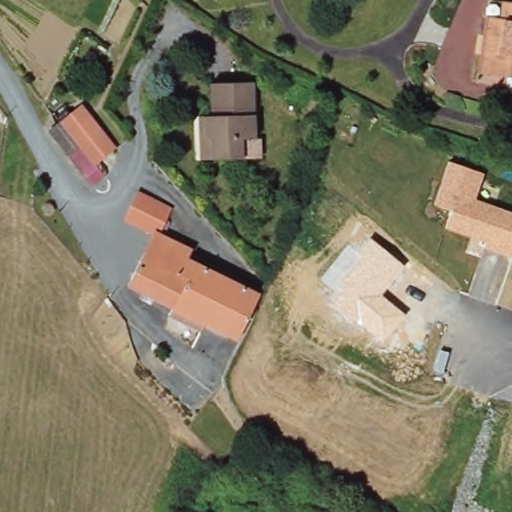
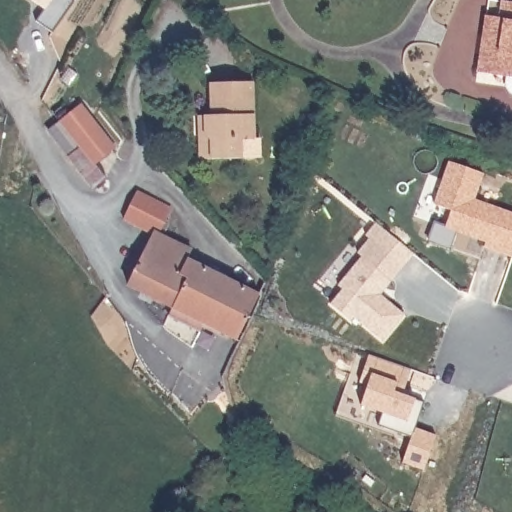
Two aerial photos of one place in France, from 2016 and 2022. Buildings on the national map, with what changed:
unchanged [(510,92),(507,85),(507,78),(481,74),(483,57),(492,2),(512,5),(512,94),(510,92)]
unchanged [(204,120),(210,119),(218,118),(215,85),(254,82),(260,158),(217,162),(207,163),(204,120)]
unchanged [(66,153),(50,132),(63,122),(60,118),(81,102),(115,144),(95,162),(104,172),(90,183),(66,153)]
unchanged [(483,173),(474,199),(512,211),(512,257),(483,248),(486,241),(445,226),(451,211),(434,204),(449,161),(483,173)]
unchanged [(189,259),(188,260),(185,267),(195,272),(188,286),(177,310),(134,288),(159,237),(126,222),(133,208),(140,193),(175,209),(162,236),(192,250),(189,259)]
unchanged [(403,265),(380,295),(403,314),(382,339),(358,320),(356,324),(331,304),(341,290),(337,287),(361,256),(357,252),(370,237),(403,265)]
unchanged [(173,318),(177,310),(188,286),(195,272),(185,267),(188,260),(228,280),(208,326),(204,334),(173,318)]
unchanged [(257,295),(240,341),(208,326),(228,280),(257,295)]
new [(402,465),(410,439),(377,427),(381,414),(361,407),(367,386),(360,384),(368,356),(410,369),(403,395),(424,402),(415,429),(436,435),(424,472),(402,465)]

